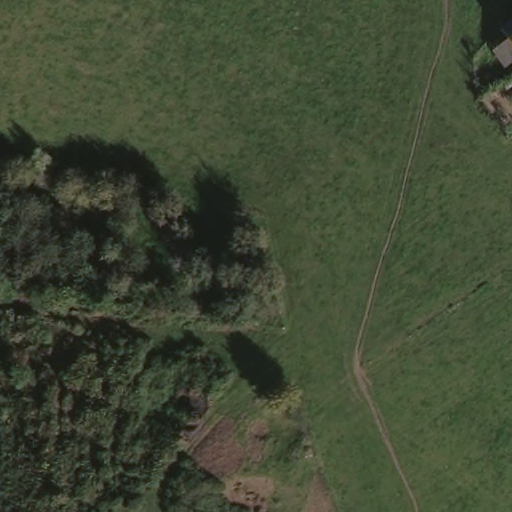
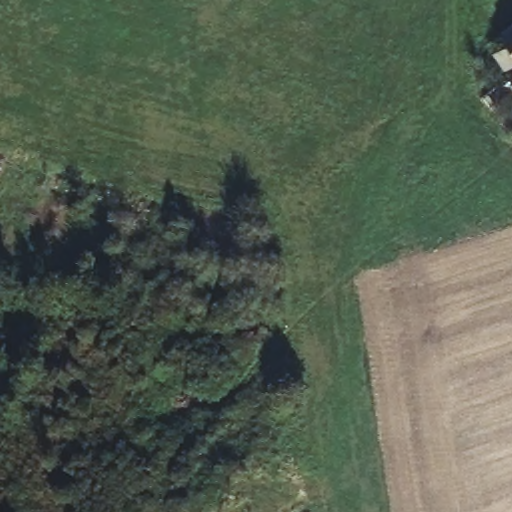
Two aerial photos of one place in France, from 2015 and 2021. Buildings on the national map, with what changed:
unchanged [(512,24),(512,65),(507,67),(496,50),(510,41),(502,31),(512,24)]

